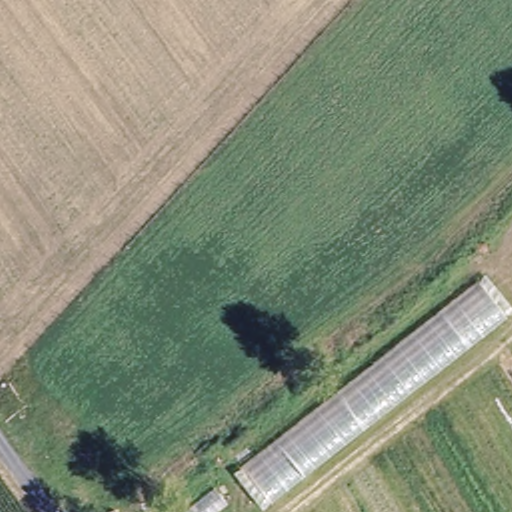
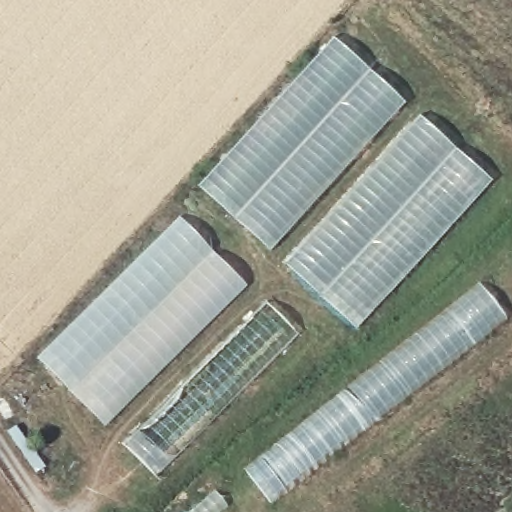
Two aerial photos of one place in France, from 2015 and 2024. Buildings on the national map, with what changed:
new [(405,102),(267,252),(197,186),(332,37),(405,102)]
new [(492,181),(356,328),(283,263),(420,115),(492,181)]
new [(248,282),(105,427),(37,357),(177,213),(248,282)]
unchanged [(512,306),(512,313),(265,512),(262,512),(235,473),(488,276),(512,306)]
new [(298,334),(156,480),(121,444),(266,301),(298,334)]
unchanged [(229,504),(219,512),(185,512),(216,487),(229,504)]

